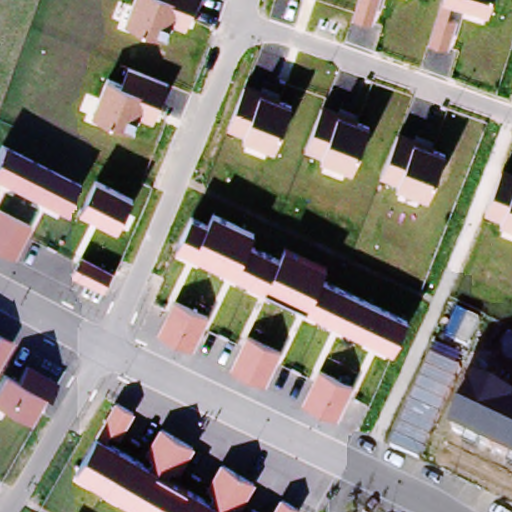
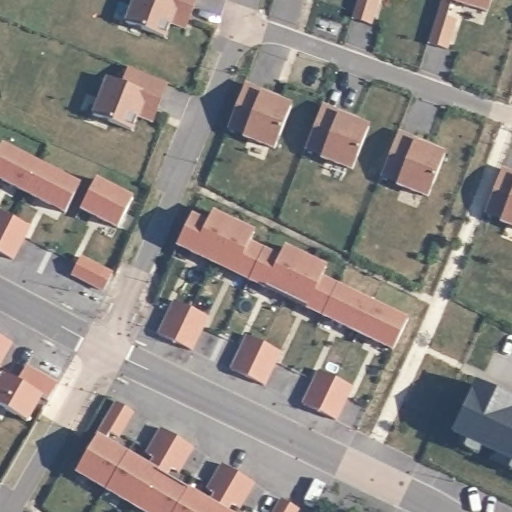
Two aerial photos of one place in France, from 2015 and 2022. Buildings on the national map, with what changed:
unchanged [(196,0),(187,28),(173,24),(168,40),(126,24),(134,0),(196,0)]
unchanged [(354,19),(359,0),(378,0),(371,24),(354,19)]
unchanged [(452,3),(448,17),(457,19),(447,49),(430,45),(443,0),(493,0),(490,13),(452,3)]
unchanged [(108,78),(124,84),(130,66),(167,83),(154,120),(143,114),(138,130),(94,114),(108,78)]
unchanged [(280,96),(278,101),(292,106),(277,151),(244,139),(245,135),(230,128),(245,84),(280,96)]
unchanged [(359,118),(357,120),(369,125),(354,171),(321,158),(307,149),(324,103),(359,118)]
unchanged [(435,144),(433,148),(447,154),(430,199),(397,185),(399,181),(382,175),(398,130),(435,144)]
unchanged [(2,144),(80,183),(67,212),(0,178),(0,150),(2,144)]
unchanged [(502,217),(486,210),(502,166),(512,170),(512,227),(500,223),(502,217)]
unchanged [(134,199),(118,231),(80,212),(97,179),(134,199)]
unchanged [(29,226),(15,259),(0,252),(0,212),(29,226)]
unchanged [(177,244),(192,213),(210,222),(214,212),(255,230),(250,241),(281,256),(286,245),(327,264),(322,276),(409,318),(394,353),(177,244)]
unchanged [(115,272),(104,293),(71,276),(80,257),(115,272)]
unchanged [(208,317),(193,351),(157,335),(173,301),(208,317)]
unchanged [(12,342),(0,364),(0,335),(12,342)]
unchanged [(281,353),(267,386),(232,369),(246,335),(281,353)]
unchanged [(4,374),(17,381),(27,364),(58,381),(49,398),(43,394),(30,422),(0,405),(0,381),(4,374)]
unchanged [(352,387),(337,419),(303,403),(317,369),(352,387)]
unchanged [(512,466),(449,437),(472,379),(512,398),(512,466)]
unchanged [(76,474),(115,402),(132,412),(119,437),(111,434),(108,441),(149,466),(154,456),(147,449),(159,426),(195,446),(180,472),(173,469),(167,476),(210,501),(215,491),(209,487),(222,464),(254,483),(239,509),(232,505),(227,512),(141,512),(76,474)]
unchanged [(282,499),(300,509),(298,512),(275,512),(282,499)]

